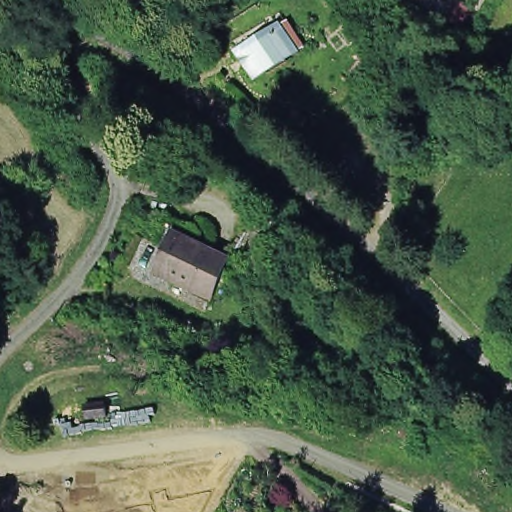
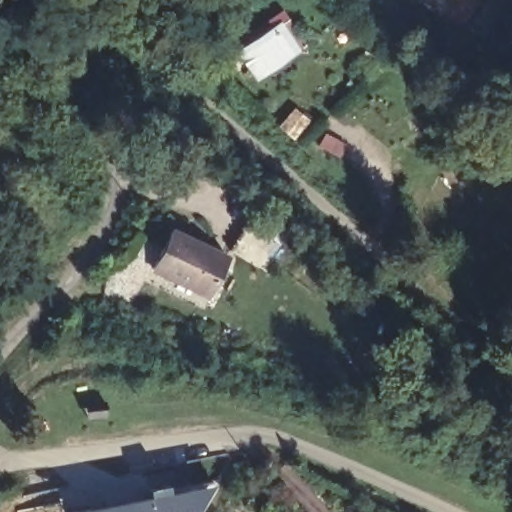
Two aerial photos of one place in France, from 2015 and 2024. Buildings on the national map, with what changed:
unchanged [(280,32),(294,55),(266,72),(259,76),(245,55),(252,50),(280,32)]
unchanged [(267,240),(258,256),(255,265),(223,250),(237,223),(242,226),(267,240)]
unchanged [(203,297),(148,270),(167,231),(223,260),(203,297)]
unchanged [(84,403),(104,400),(106,414),(86,416),(84,403)]
new [(198,512),(69,512),(214,485),(198,512)]

